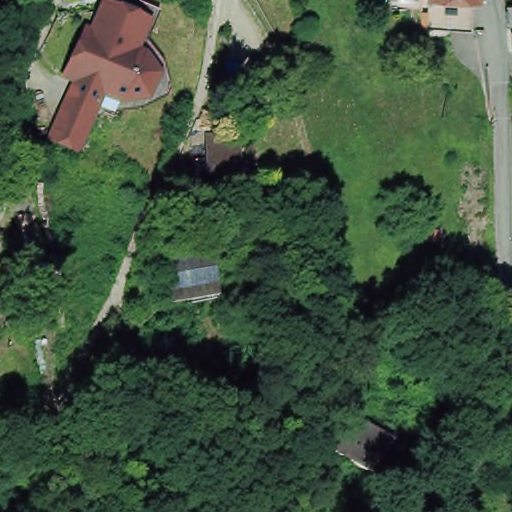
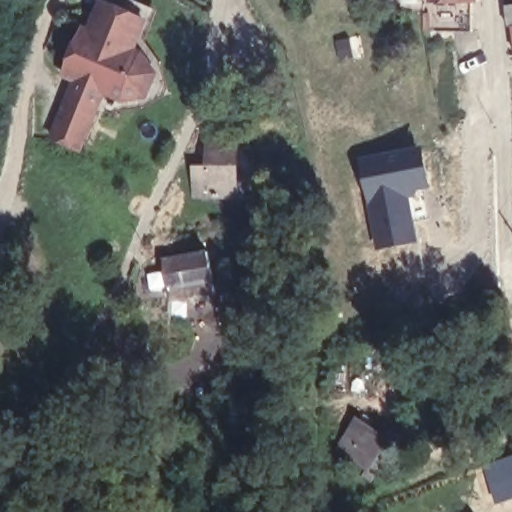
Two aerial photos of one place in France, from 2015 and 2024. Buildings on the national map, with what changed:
new [(393,6),(392,0),(420,0),(420,4),(393,6)]
unchanged [(150,20),(140,50),(144,51),(158,72),(148,101),(122,104),(103,97),(80,154),(49,141),(69,82),(58,79),(80,26),(88,29),(98,1),(150,20)]
unchanged [(382,1),(384,9),(378,10),(376,2),(382,1)]
unchanged [(512,29),(509,29),(506,9),(512,8),(512,29)]
unchanged [(512,30),(512,42),(510,30),(512,30)]
unchanged [(233,187),(229,187),(229,199),(218,199),(218,201),(213,201),(213,199),(198,198),(198,171),(209,172),(209,152),(210,141),(231,142),(231,154),(233,154),(233,187)]
new [(424,144),(432,190),(411,195),(419,242),(374,249),(356,156),(424,144)]
unchanged [(164,248),(209,241),(214,272),(216,282),(171,291),(169,281),(164,248)]
unchanged [(393,436),(373,468),(346,451),(359,430),(366,418),(374,423),(393,436)]
new [(512,498),(494,505),(482,462),(512,453),(512,498)]

